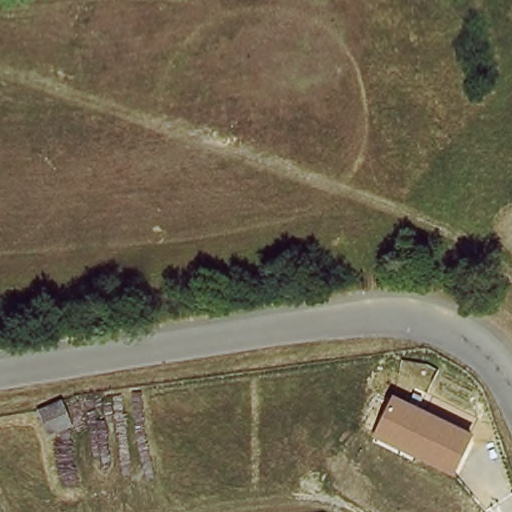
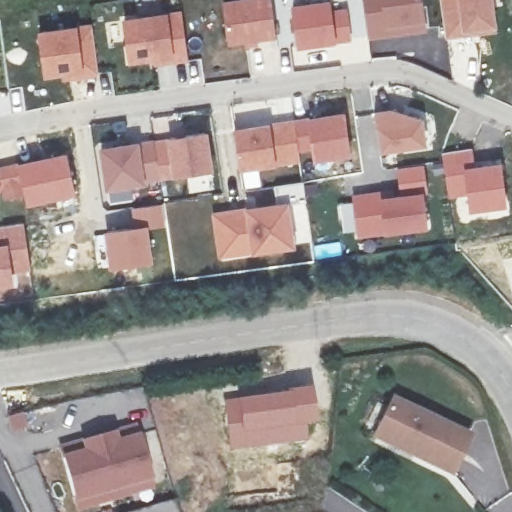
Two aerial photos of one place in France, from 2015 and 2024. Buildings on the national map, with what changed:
new [(270,0),(275,35),(227,41),(222,1),(233,0),(270,0)]
new [(362,0),(420,0),(423,19),(424,29),(397,33),(367,36),(362,0)]
new [(441,0),(491,0),(495,31),(473,34),(445,38),(445,33),(441,0)]
new [(492,8),(491,0),(503,0),(503,6),(492,8)]
new [(345,10),(349,38),(297,46),(292,6),(328,1),(330,12),(345,10)]
new [(168,12),(182,10),(190,60),(153,68),(152,59),(130,63),(124,19),(168,12)]
new [(78,26),(92,24),(99,75),(63,82),(62,75),(45,78),(39,31),(78,26)]
new [(245,45),(244,39),(254,37),(255,43),(245,45)]
new [(392,108),(424,119),(429,146),(382,154),(375,113),(392,108)]
new [(272,124),(295,121),(302,164),(277,166),(240,172),(234,129),(272,124)]
new [(140,141),(169,138),(210,131),(215,173),(174,179),(173,175),(147,179),(147,185),(107,191),(102,148),(140,141)]
new [(473,147),(476,164),(502,161),(507,209),(468,214),(467,197),(447,199),(440,152),(473,147)]
new [(20,195),(3,199),(1,188),(0,188),(0,169),(15,166),(20,195)]
new [(248,209),(278,203),(275,187),(302,182),(305,202),(290,204),(297,248),(252,255),(220,260),(213,212),(248,209)]
new [(426,225),(359,235),(353,197),(372,194),(382,193),(382,200),(373,201),(422,194),(426,225)]
new [(108,269),(103,231),(133,226),(131,208),(164,203),(167,227),(148,229),(154,263),(108,269)]
new [(30,269),(12,270),(15,286),(0,287),(0,228),(23,224),(30,269)]
new [(311,387),(316,422),(307,424),(308,441),(230,451),(223,400),(311,387)]
unchanged [(473,434),(453,476),(372,437),(393,395),(473,434)]
demolished [(37,411),(63,402),(72,428),(48,437),(37,411)]
new [(130,427),(148,486),(75,508),(58,449),(130,427)]

